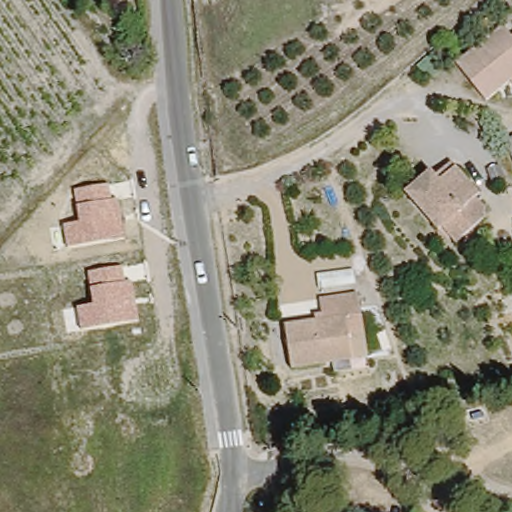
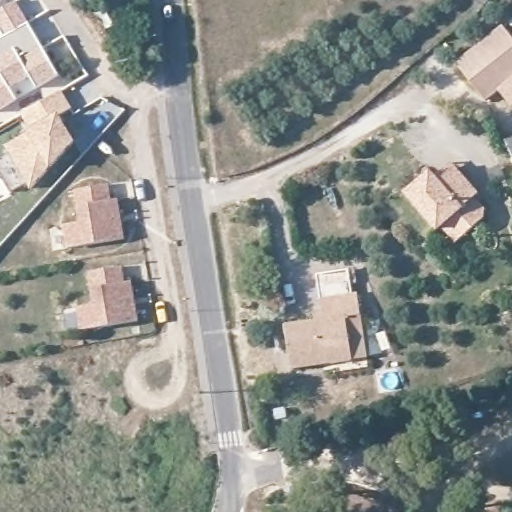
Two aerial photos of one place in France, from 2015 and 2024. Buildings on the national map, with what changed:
new [(0,1),(0,0),(2,0),(0,1)]
new [(30,74),(10,87),(17,99),(0,110),(0,11),(16,1),(59,75),(38,87),(30,74)]
unchanged [(487,98),(462,69),(504,33),(511,41),(512,40),(512,78),(511,77),(487,98)]
new [(6,145),(31,132),(22,114),(61,90),(71,106),(58,115),(76,142),(51,169),(31,188),(6,145)]
unchanged [(503,125),(512,122),(512,150),(503,125)]
unchanged [(445,231),(441,235),(407,199),(433,175),(437,180),(458,160),(469,171),(481,186),(478,190),(489,202),(487,221),(468,238),(459,246),(445,231)]
unchanged [(64,225),(80,222),(78,206),(75,191),(109,186),(112,201),(119,200),(125,237),(68,247),(64,225)]
unchanged [(78,308),(94,306),(92,290),(89,273),(123,266),(125,283),(133,281),(140,321),(82,331),(78,308)]
unchanged [(352,281),(354,295),(318,301),(316,286),(352,281)]
unchanged [(297,375),(291,332),(326,328),(324,309),(355,305),(359,332),(364,365),(351,367),(297,375)]

